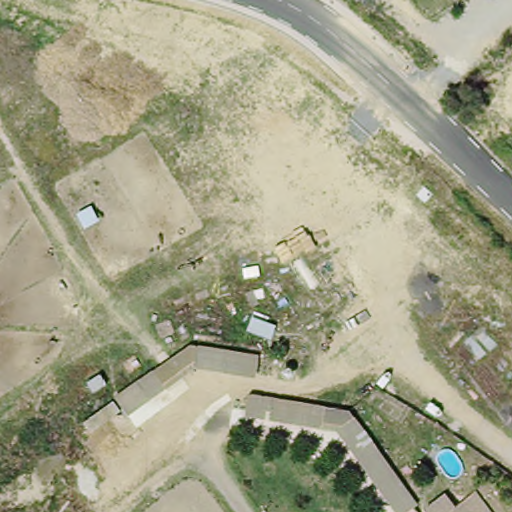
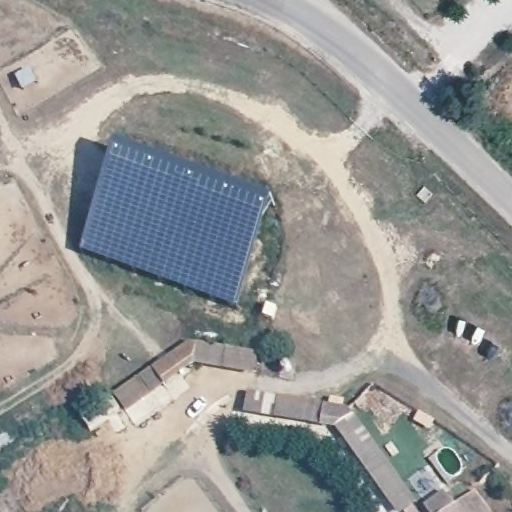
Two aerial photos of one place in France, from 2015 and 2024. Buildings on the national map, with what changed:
new [(276,207),(238,309),(83,252),(118,150),(276,207)]
unchanged [(264,377),(199,367),(138,409),(125,391),(193,344),(268,357),(264,377)]
unchanged [(138,409),(122,419),(118,414),(85,437),(78,424),(111,401),(125,391),(138,409)]
unchanged [(408,512),(404,512),(341,422),(251,407),(253,392),(357,409),(422,502),(408,512)]
unchanged [(474,494),(487,512),(424,512),(424,511),(442,495),(453,507),(474,494)]

